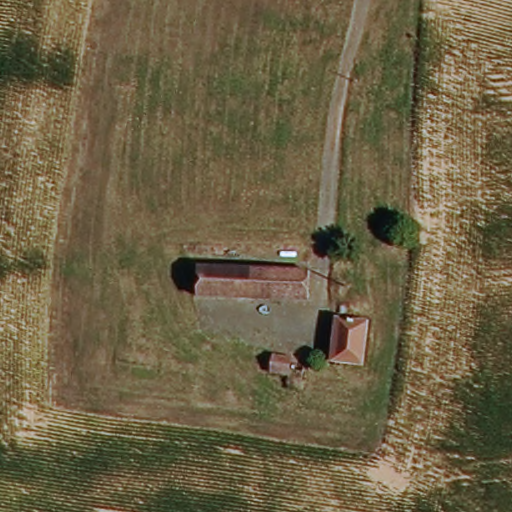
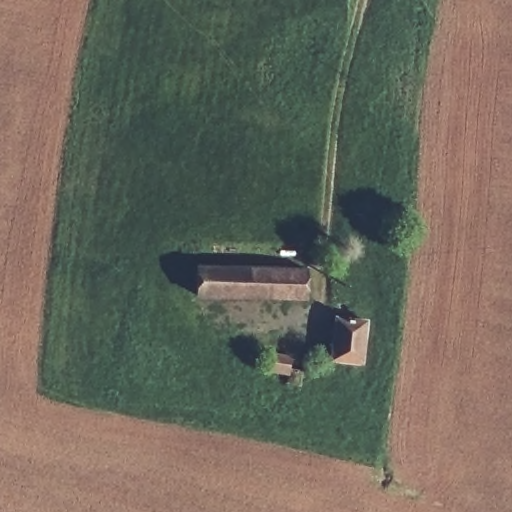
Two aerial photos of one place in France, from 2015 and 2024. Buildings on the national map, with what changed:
unchanged [(200,295),(201,266),(310,270),(309,298),(200,295)]
unchanged [(363,362),(334,359),(339,318),(368,321),(363,362)]

